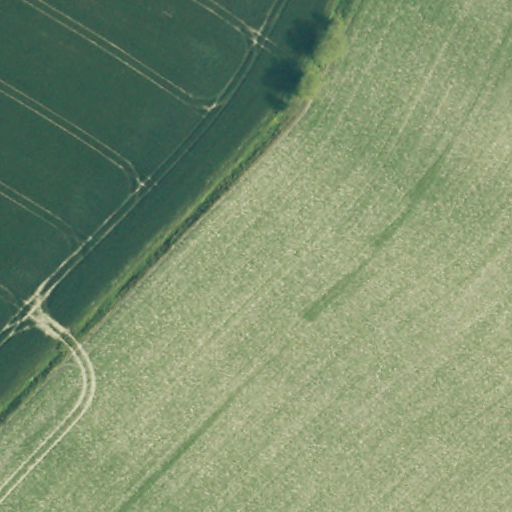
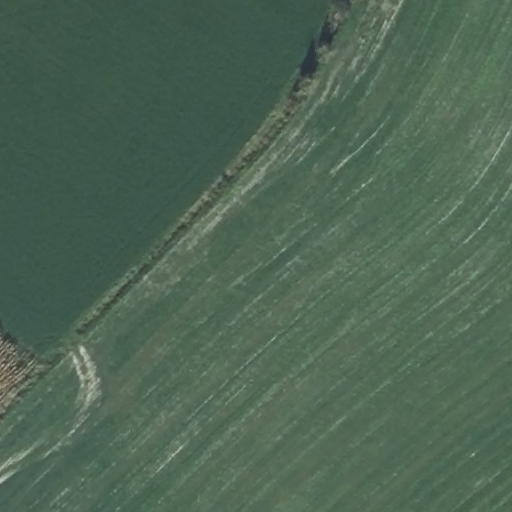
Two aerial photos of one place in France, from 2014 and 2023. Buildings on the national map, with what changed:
[]

